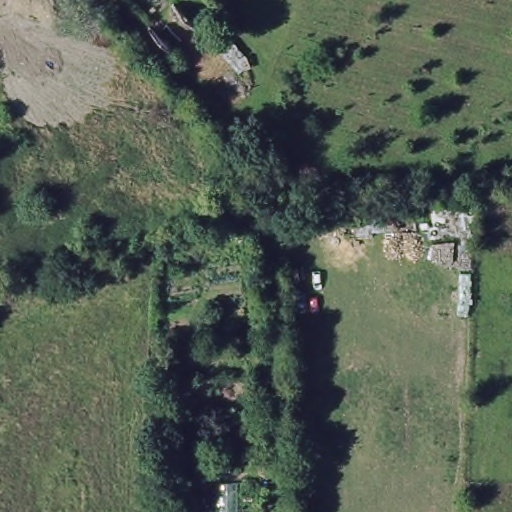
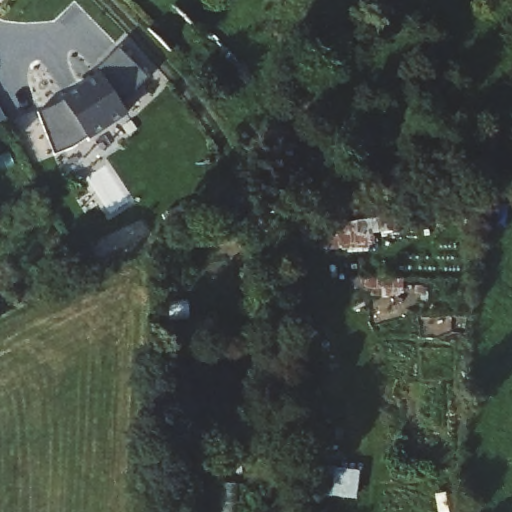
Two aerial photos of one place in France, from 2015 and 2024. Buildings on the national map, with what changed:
new [(128,115),(92,141),(56,158),(38,112),(65,103),(104,78),(99,71),(121,49),(151,79),(122,106),(128,115)]

